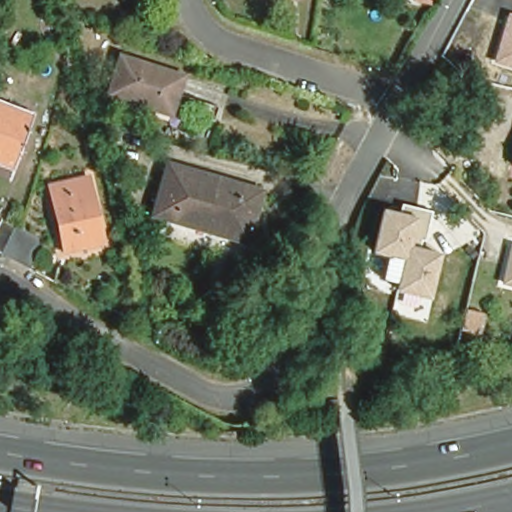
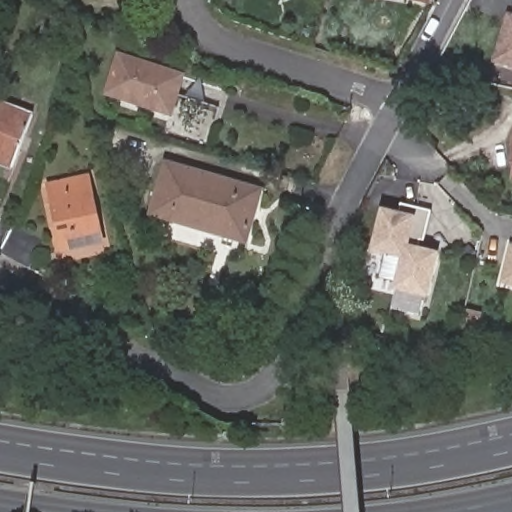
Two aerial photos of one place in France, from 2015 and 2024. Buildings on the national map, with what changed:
unchanged [(415,0),(432,0),(431,3),(415,0)]
unchanged [(493,64),(508,12),(512,13),(512,70),(493,64)]
unchanged [(181,73),(170,111),(107,94),(119,56),(181,73)]
unchanged [(8,169),(0,165),(0,99),(34,116),(8,169)]
unchanged [(511,144),(512,137),(512,144),(511,144)]
unchanged [(258,188),(248,237),(154,217),(165,167),(258,188)]
unchanged [(84,183),(97,247),(60,255),(46,190),(84,183)]
unchanged [(441,251),(431,298),(395,291),(396,281),(382,278),(386,263),(380,254),(372,253),(382,208),(399,212),(401,203),(433,211),(423,248),(441,251)]
unchanged [(0,252),(0,214),(14,221),(42,235),(27,266),(0,252)]
unchanged [(501,286),(511,244),(512,244),(512,289),(501,286)]

